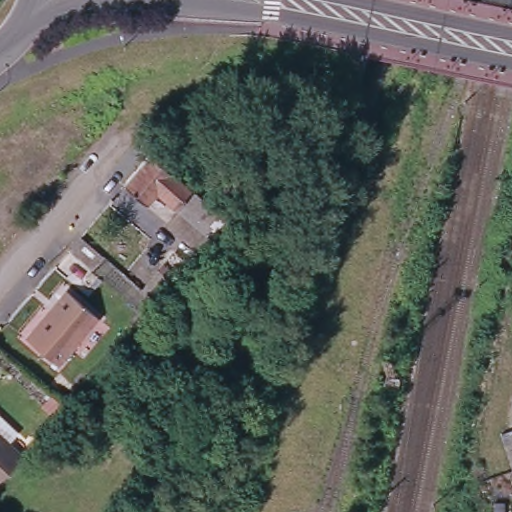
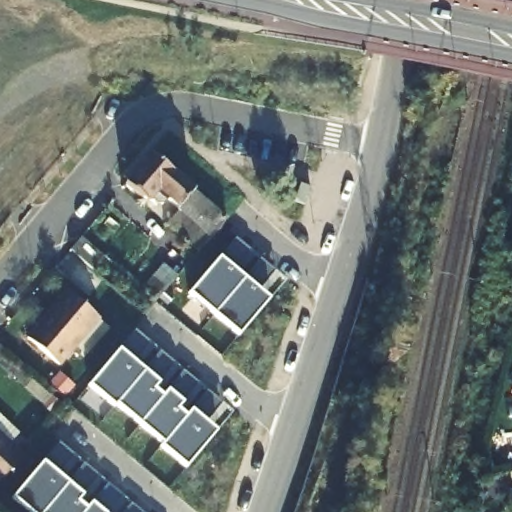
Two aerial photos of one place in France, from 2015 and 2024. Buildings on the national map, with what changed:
unchanged [(147,290),(180,250),(184,254),(188,249),(152,217),(147,224),(138,224),(132,219),(129,222),(106,203),(140,163),(145,156),(150,151),(226,217),(195,254),(159,300),(147,290)]
unchanged [(82,235),(105,255),(95,266),(72,246),(82,235)]
new [(274,270),(257,287),(268,298),(238,332),(188,291),(218,256),(235,237),(274,270)]
unchanged [(70,288),(102,315),(61,362),(29,335),(70,288)]
new [(221,402),(205,421),(216,430),(185,467),(160,446),(165,441),(115,402),(113,405),(88,384),(119,347),(135,330),(221,402)]
unchanged [(20,430),(10,442),(0,434),(0,413),(20,430)]
unchanged [(21,452),(5,471),(0,477),(0,435),(21,452)]
new [(29,512),(12,497),(42,460),(59,442),(141,512),(29,512)]

